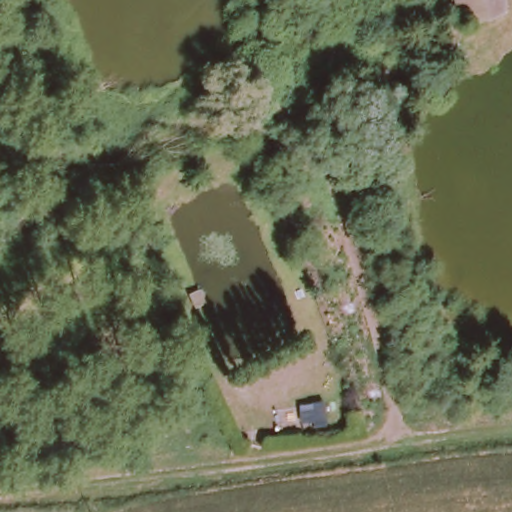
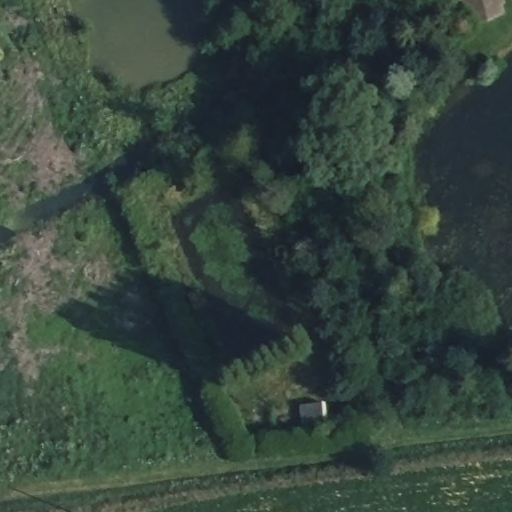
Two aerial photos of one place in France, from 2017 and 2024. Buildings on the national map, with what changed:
unchanged [(327,425),(298,427),(295,399),(326,397),(327,425)]

